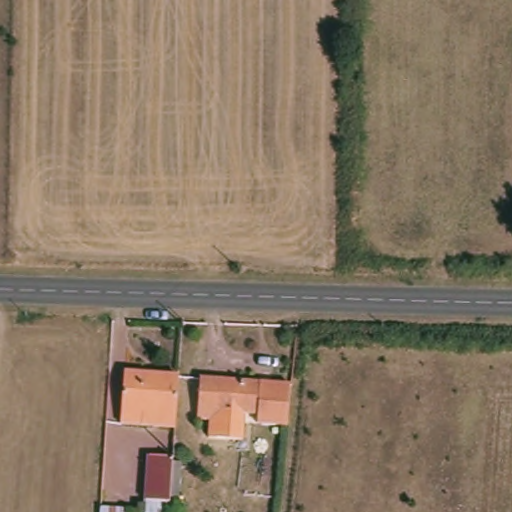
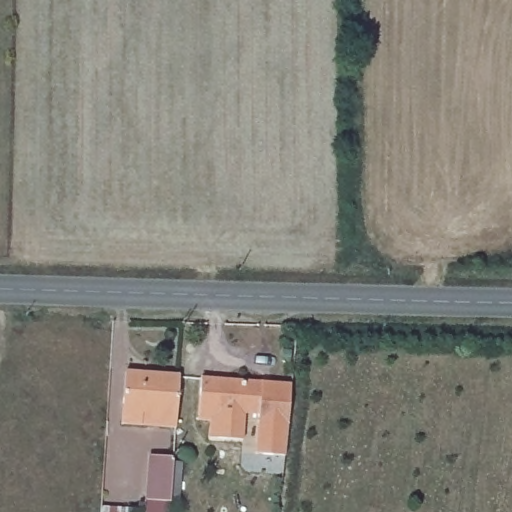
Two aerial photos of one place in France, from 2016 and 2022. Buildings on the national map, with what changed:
unchanged [(177,414),(147,414),(145,430),(121,429),(126,374),(183,378),(177,414)]
unchanged [(287,426),(256,424),(256,414),(212,414),(210,422),(192,422),(196,378),(291,384),(287,426)]
unchanged [(170,508),(146,506),(151,456),(174,456),(170,508)]

